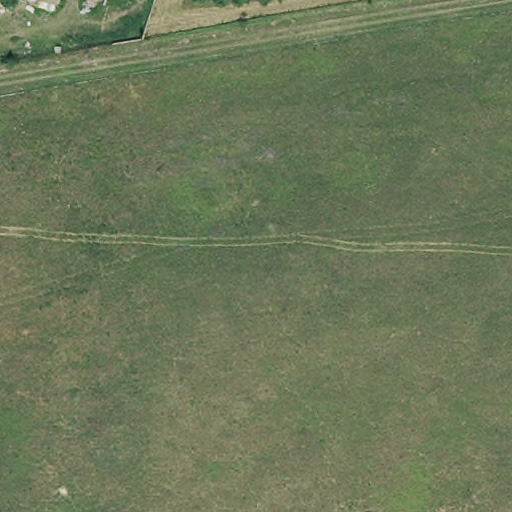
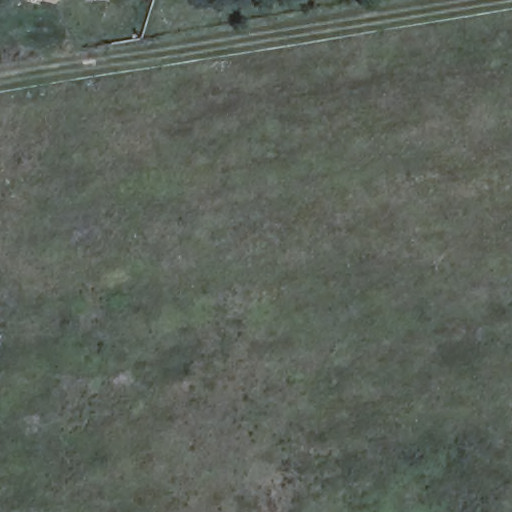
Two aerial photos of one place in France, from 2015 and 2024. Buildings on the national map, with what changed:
unchanged [(52,3),(41,0),(53,0),(52,3)]

